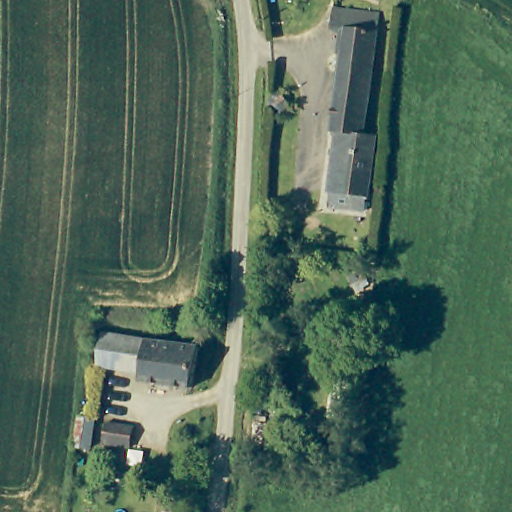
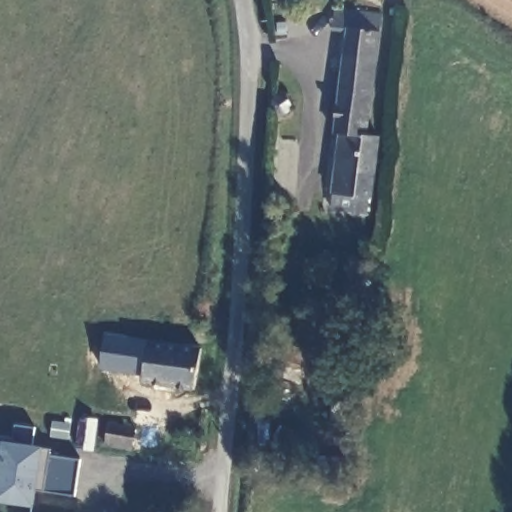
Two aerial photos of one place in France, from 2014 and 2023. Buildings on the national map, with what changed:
unchanged [(379,141),(372,202),(332,197),(339,137),(334,136),(347,33),(334,31),(336,14),(381,19),(379,36),(368,139),(379,141)]
unchanged [(282,95),(283,95),(284,96),(285,96),(286,97),(286,98),(287,98),(287,99),(288,99),(288,100),(289,101),(289,102),(289,103),(290,104),(289,105),(289,106),(289,108),(289,109),(288,109),(287,110),(286,111),(284,113),(282,113),(280,113),(278,113),(277,112),(275,111),(274,109),(273,109),(273,108),(272,106),(272,105),(272,104),(272,103),(272,101),(273,101),(273,100),(274,99),(275,98),(276,97),(276,96),(277,96),(278,96),(279,95),(281,95),(282,95)]
unchanged [(201,348),(194,389),(143,381),(144,373),(101,366),(105,334),(201,348)]
unchanged [(96,419),(93,451),(76,449),(78,418),(96,419)]
unchanged [(135,428),(132,449),(105,444),(108,424),(135,428)]
new [(38,443),(46,444),(45,448),(53,448),(51,454),(82,458),(77,494),(38,488),(36,506),(0,501),(0,463),(1,459),(0,459),(0,436),(3,437),(16,438),(17,425),(38,428),(38,443)]

